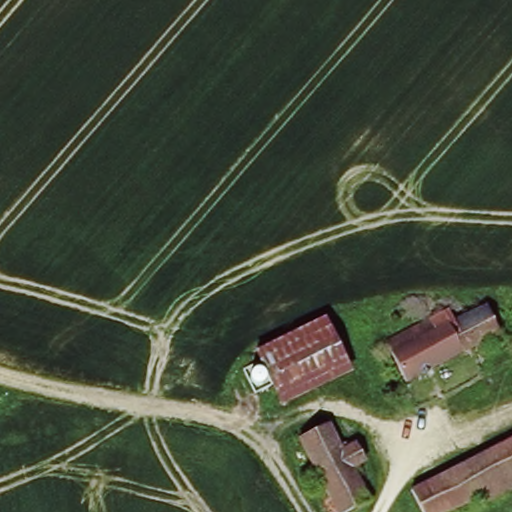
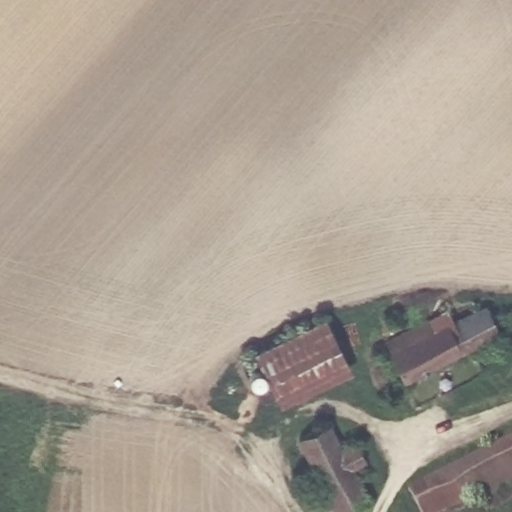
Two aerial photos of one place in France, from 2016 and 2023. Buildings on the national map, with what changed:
unchanged [(446,308),(454,323),(483,308),(496,333),(406,380),(385,341),(446,308)]
unchanged [(351,373),(276,407),(251,351),(324,316),(351,373)]
unchanged [(331,447),(338,444),(341,451),(352,447),(361,465),(354,467),(361,480),(349,484),(361,507),(351,512),(331,512),(296,440),(323,427),(331,447)]
unchanged [(512,492),(479,509),(474,502),(456,512),(416,512),(408,495),(512,442),(512,492)]

